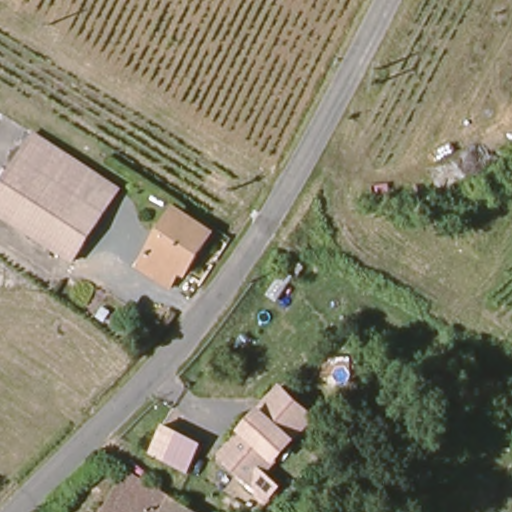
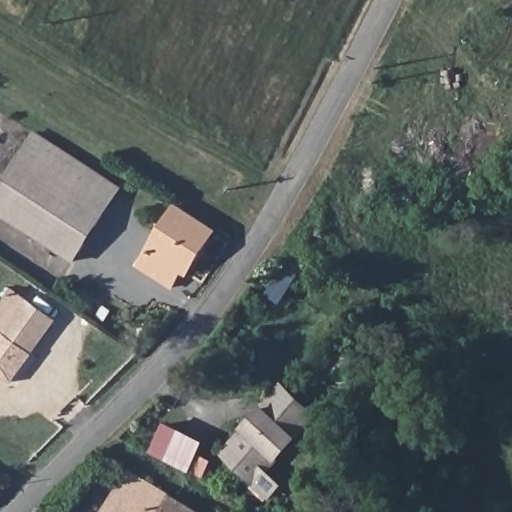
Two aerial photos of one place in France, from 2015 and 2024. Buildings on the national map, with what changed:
unchanged [(22,153),(33,137),(118,192),(108,209),(22,153)]
unchanged [(75,261),(0,212),(0,187),(22,153),(108,209),(75,261)]
unchanged [(158,281),(136,266),(175,208),(211,233),(185,274),(183,272),(171,289),(158,281)]
new [(12,383),(0,384),(0,332),(0,305),(12,287),(57,320),(32,355),(12,383)]
unchanged [(273,471),(288,487),(275,502),(220,453),(285,383),(323,417),(273,471)]
unchanged [(150,453),(163,424),(205,442),(190,473),(150,453)]
unchanged [(191,499),(197,496),(203,499),(202,506),(212,512),(103,512),(131,466),(191,499)]

